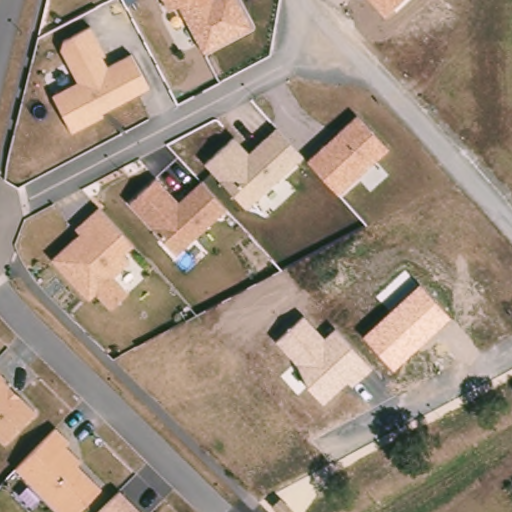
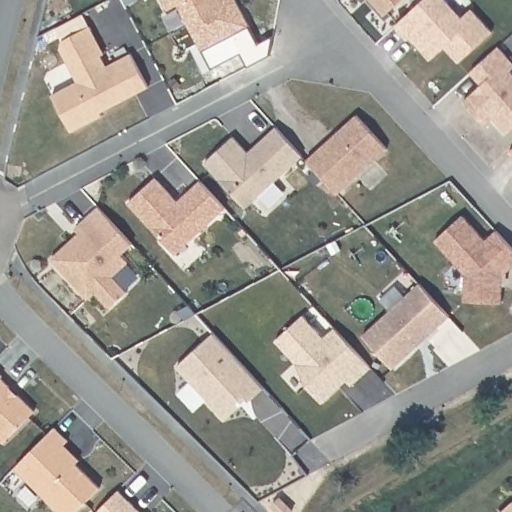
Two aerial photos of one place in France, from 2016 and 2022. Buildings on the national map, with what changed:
unchanged [(180,5),(167,11),(163,0),(236,0),(251,29),(204,51),(180,5)]
unchanged [(385,17),(369,0),(404,0),(385,17)]
new [(423,0),(446,0),(462,17),(472,9),(493,31),(457,62),(443,46),(429,60),(410,39),(405,40),(393,27),(423,0)]
unchanged [(51,96),(77,83),(60,48),(63,41),(91,27),(105,54),(102,57),(106,66),(132,54),(147,89),(101,111),(103,117),(72,132),(51,96)]
new [(495,122),(474,100),(493,82),(481,70),(510,45),(512,47),(512,124),(508,120),(504,115),(503,115),(495,122)]
unchanged [(308,162),(357,115),(388,149),(338,195),(308,162)]
unchanged [(205,166),(236,139),(250,152),(277,129),(302,157),(246,210),(205,166)]
unchanged [(130,206),(157,181),(181,204),(200,185),(224,210),(177,255),(130,206)]
unchanged [(52,261),(78,233),(74,229),(100,207),(134,245),(123,254),(131,263),(116,277),(129,292),(110,309),(96,293),(89,300),(52,261)]
new [(473,297),(475,271),(445,237),(474,212),(496,237),(507,228),(512,233),(512,283),(511,301),(473,297)]
unchanged [(360,335),(419,281),(451,316),(394,370),(360,335)]
unchanged [(306,387),(296,365),(275,343),(303,314),(324,337),(335,327),(370,367),(351,385),(349,381),(323,404),(306,387)]
new [(262,387),(248,400),(244,396),(223,417),(176,367),(213,332),(262,387)]
unchanged [(0,441),(0,374),(35,413),(4,445),(0,441)]
unchanged [(55,428),(69,440),(65,445),(81,460),(76,466),(100,488),(77,512),(59,512),(16,469),(55,428)]
unchanged [(140,512),(101,512),(119,492),(140,512)]
new [(512,512),(502,512),(512,502),(512,512)]

